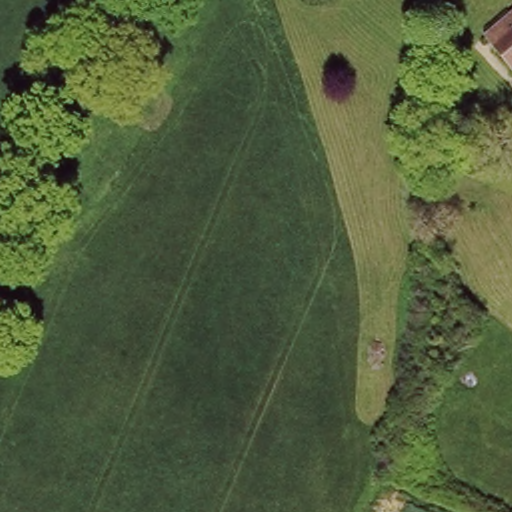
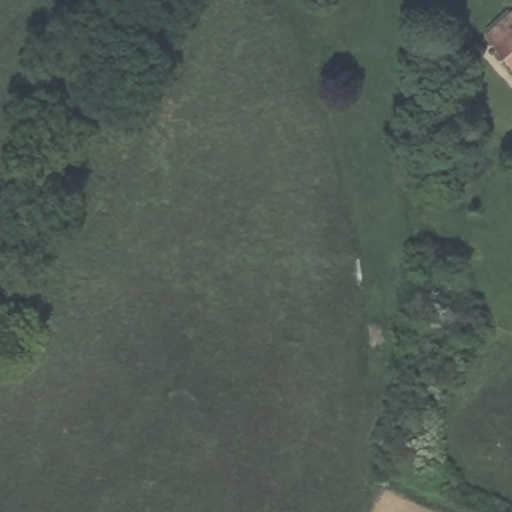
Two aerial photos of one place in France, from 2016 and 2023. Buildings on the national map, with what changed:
unchanged [(512,14),(512,68),(485,37),(512,14)]

